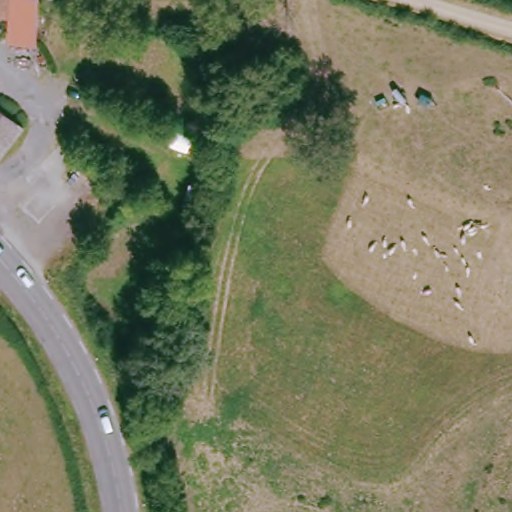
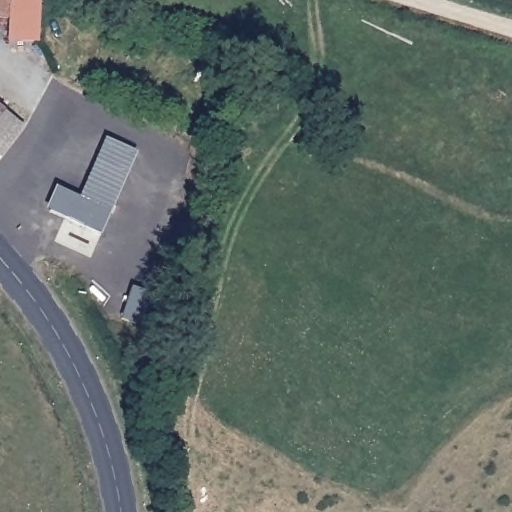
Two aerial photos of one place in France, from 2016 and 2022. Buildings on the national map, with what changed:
unchanged [(63,4),(59,48),(30,46),(31,24),(0,21),(0,0),(51,0),(63,4)]
unchanged [(0,139),(0,109),(15,122),(0,139)]
new [(45,209),(55,186),(80,196),(106,138),(137,150),(101,232),(45,209)]

